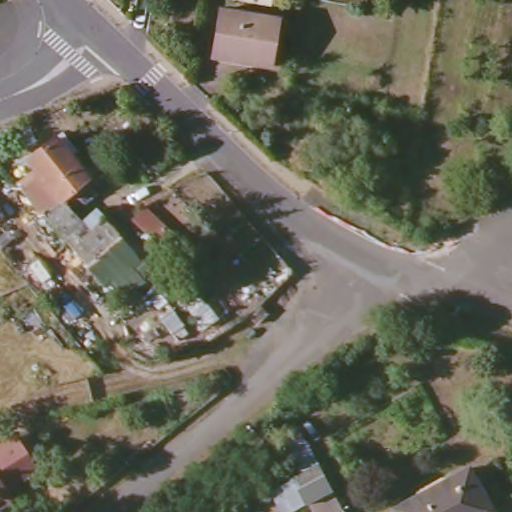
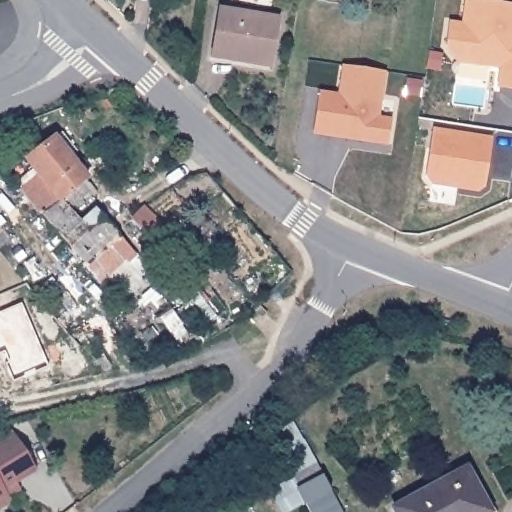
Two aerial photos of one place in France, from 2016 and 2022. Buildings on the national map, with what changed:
new [(499,67),(458,64),(443,52),(448,18),(462,21),(462,0),(493,0),(512,2),(512,89),(499,88),(499,67)]
unchanged [(252,63),(251,68),(229,63),(231,55),(210,51),(216,14),(275,24),(268,65),(252,63)]
new [(313,136),(320,93),(339,96),(344,65),(387,72),(379,117),(392,119),(388,146),(313,136)]
new [(487,187),(480,193),(435,187),(426,175),(431,128),(492,136),(487,187)]
unchanged [(20,184),(39,170),(27,155),(54,134),(86,175),(84,177),(94,189),(77,203),(73,200),(67,205),(79,220),(93,208),(112,230),(109,233),(121,247),(92,271),(80,257),(20,184)]
unchanged [(165,260),(126,215),(139,205),(177,251),(165,260)]
unchanged [(0,494),(0,439),(5,436),(25,468),(6,479),(11,487),(0,494)]
unchanged [(341,512),(308,512),(305,505),(290,512),(277,512),(270,494),(299,478),(288,445),(302,436),(341,512)]
unchanged [(394,509),(468,470),(490,512),(395,512),(394,509)]
unchanged [(1,497),(0,497),(0,496),(1,497)]

